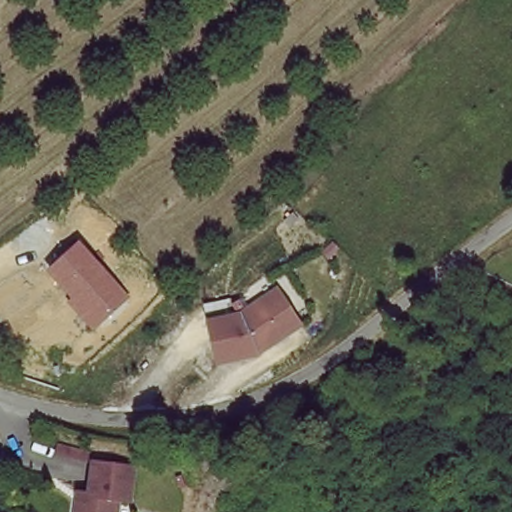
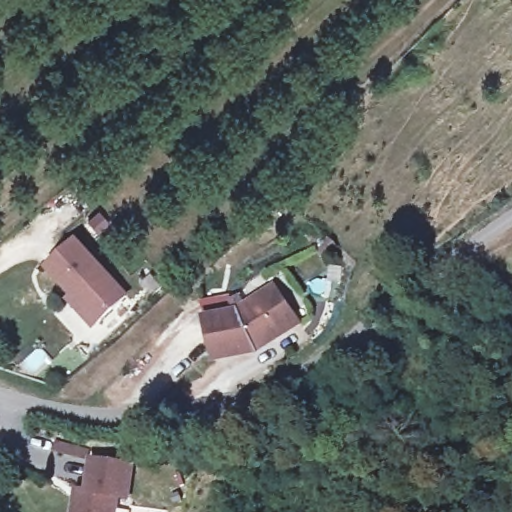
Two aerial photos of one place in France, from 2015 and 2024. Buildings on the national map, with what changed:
unchanged [(82,240),(130,298),(94,329),(68,301),(71,297),(48,269),(82,240)]
unchanged [(294,322),(239,357),(216,364),(207,323),(236,317),(275,291),(294,322)]
unchanged [(116,496),(114,512),(75,512),(77,499),(85,500),(89,462),(131,467),(128,497),(116,496)]

